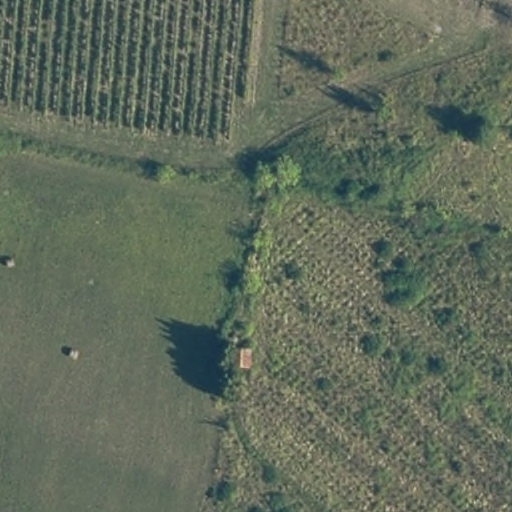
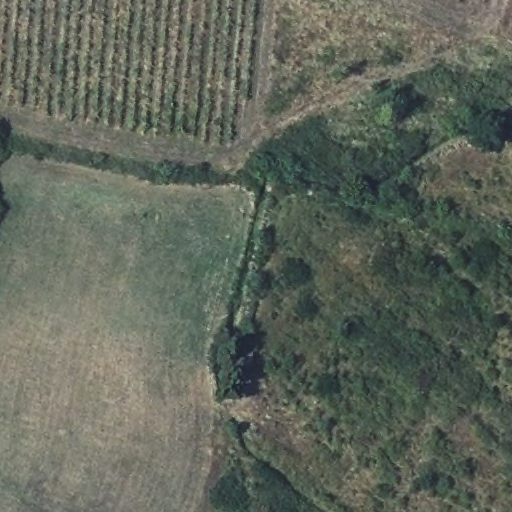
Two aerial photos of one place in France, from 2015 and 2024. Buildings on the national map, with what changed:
unchanged [(249,368),(234,367),(235,347),(252,348),(249,368)]

